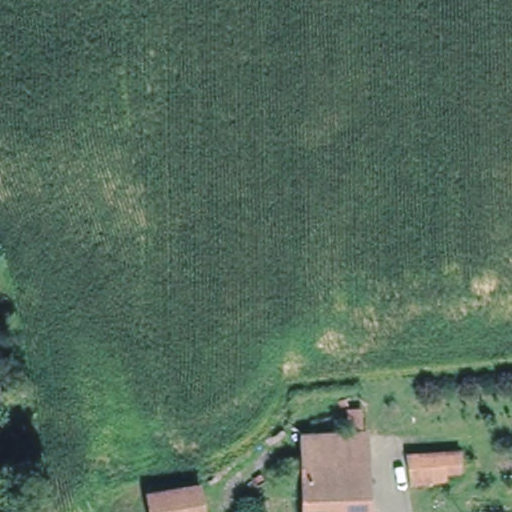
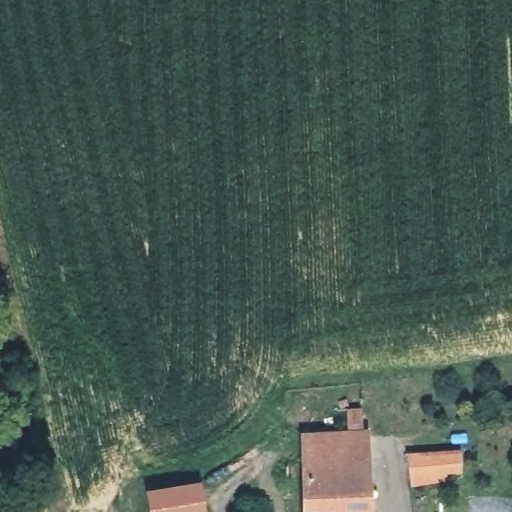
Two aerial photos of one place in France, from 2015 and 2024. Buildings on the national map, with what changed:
unchanged [(306,431),(368,432),(368,460),(305,460),(306,431)]
unchanged [(456,455),(457,472),(441,472),(441,480),(426,479),(409,478),(410,455),(456,455)]
unchanged [(368,512),(305,512),(305,460),(368,460),(368,512)]
unchanged [(204,512),(158,512),(156,491),(203,488),(204,512)]

